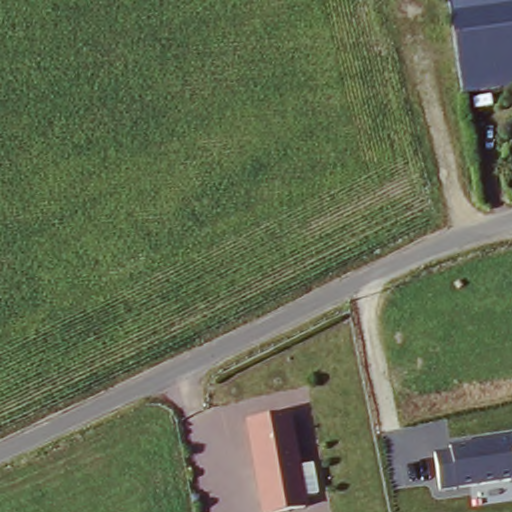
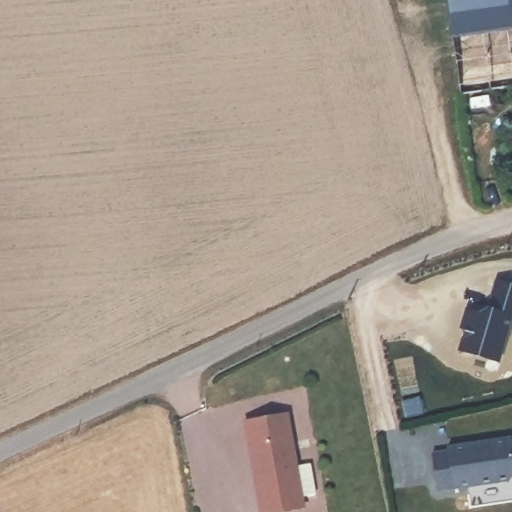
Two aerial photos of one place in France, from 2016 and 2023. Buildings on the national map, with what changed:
unchanged [(460,99),(446,0),(512,0),(512,91),(460,99)]
new [(467,333),(462,332),(468,312),(481,315),(490,311),(498,283),(512,287),(512,320),(499,366),(460,354),(467,333)]
unchanged [(286,417),(306,508),(289,512),(263,512),(244,426),(286,417)]
unchanged [(437,491),(434,452),(448,450),(512,442),(512,480),(453,487),(437,491)]

